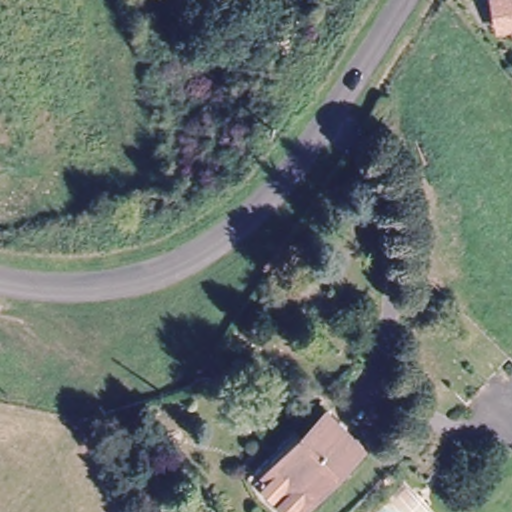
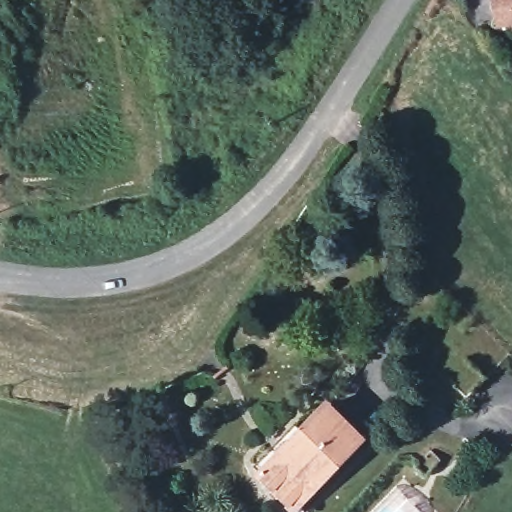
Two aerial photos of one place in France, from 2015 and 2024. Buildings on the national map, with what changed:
unchanged [(504,30),(497,0),(512,0),(512,28),(504,30)]
unchanged [(500,382),(479,401),(464,384),(482,364),(500,382)]
unchanged [(369,446),(304,512),(290,512),(273,495),(279,485),(254,462),(284,428),(292,437),(325,402),(369,446)]
unchanged [(442,512),(383,512),(413,482),(442,512)]

